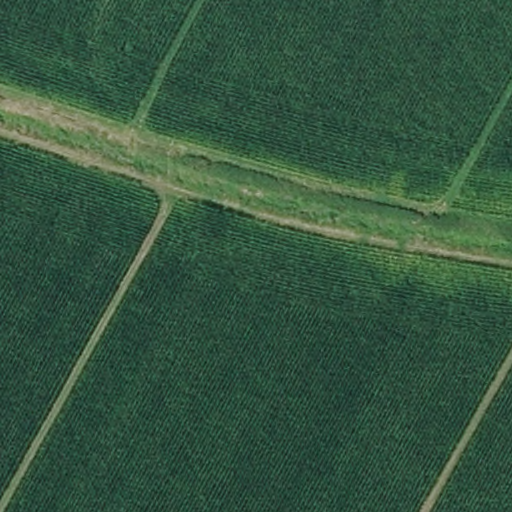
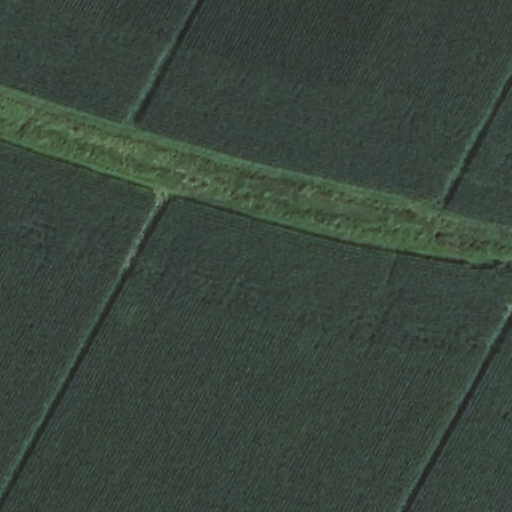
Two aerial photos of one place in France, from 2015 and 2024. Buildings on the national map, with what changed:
[]

